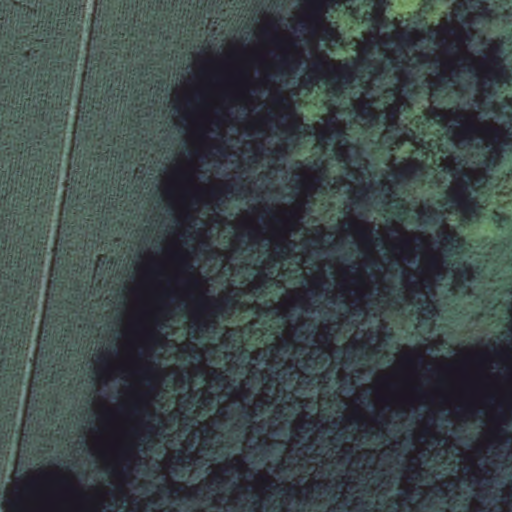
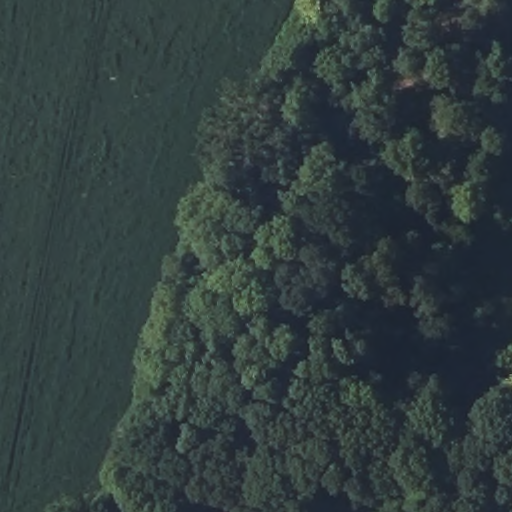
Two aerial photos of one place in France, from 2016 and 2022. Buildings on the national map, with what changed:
[]

